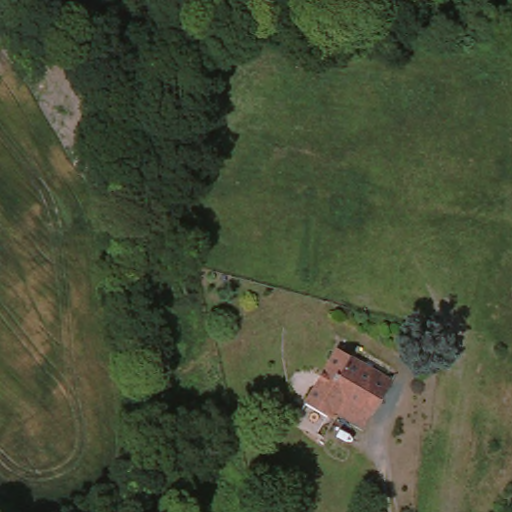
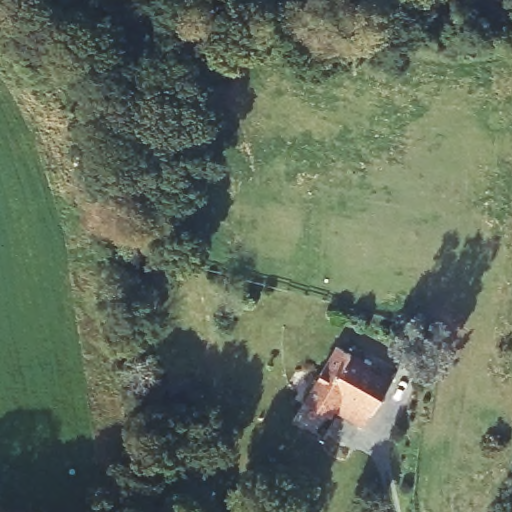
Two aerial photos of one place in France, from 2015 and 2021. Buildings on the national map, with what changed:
unchanged [(354,432),(327,414),(334,400),(322,392),(335,369),(342,357),(389,382),(381,396),(360,432),(354,432)]

